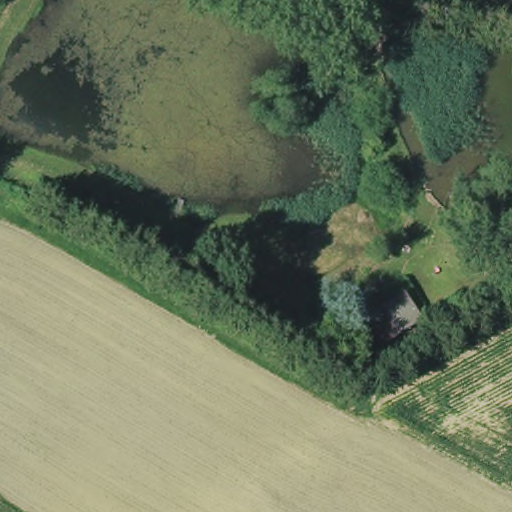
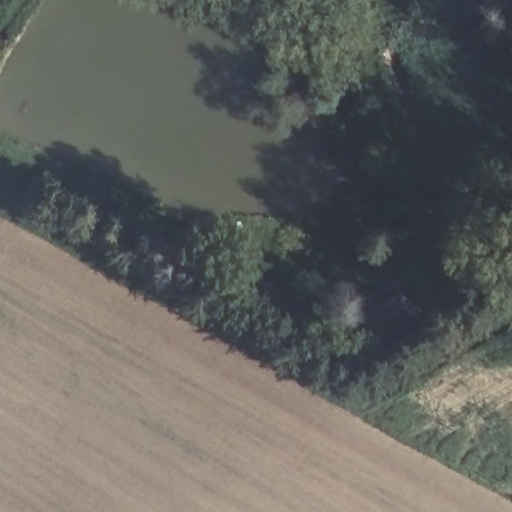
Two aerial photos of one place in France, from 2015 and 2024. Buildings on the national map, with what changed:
unchanged [(378,315),(405,297),(422,322),(394,338),(378,315)]

